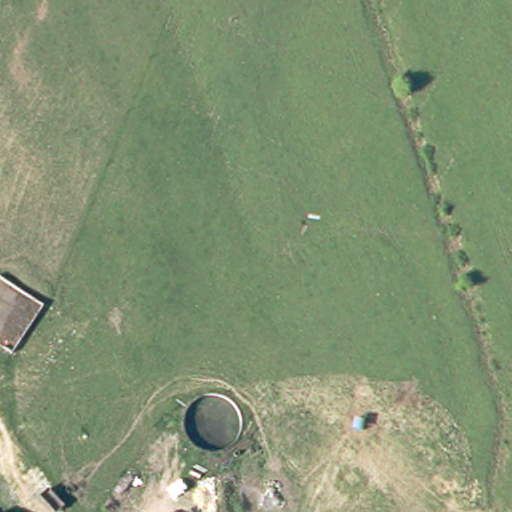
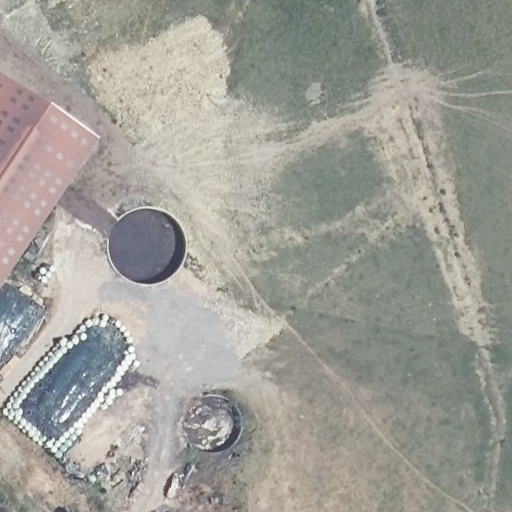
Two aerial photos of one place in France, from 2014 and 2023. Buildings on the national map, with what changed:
new [(92,138),(0,278),(0,76),(92,138)]

